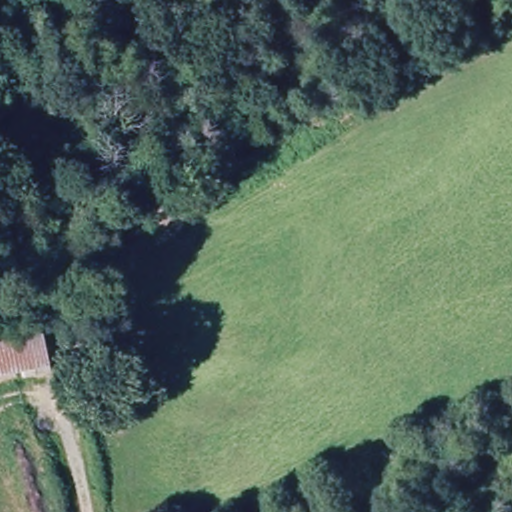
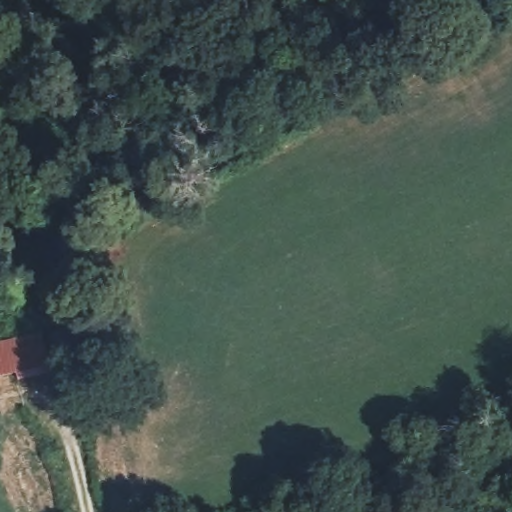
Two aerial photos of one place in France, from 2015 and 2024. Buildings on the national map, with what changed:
unchanged [(53,364),(31,373),(0,383),(0,340),(40,327),(53,364)]

